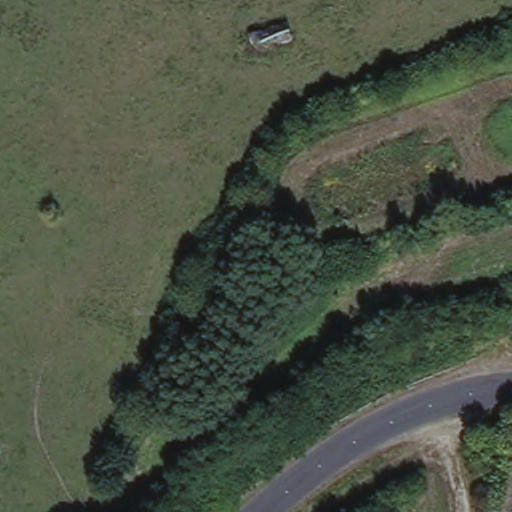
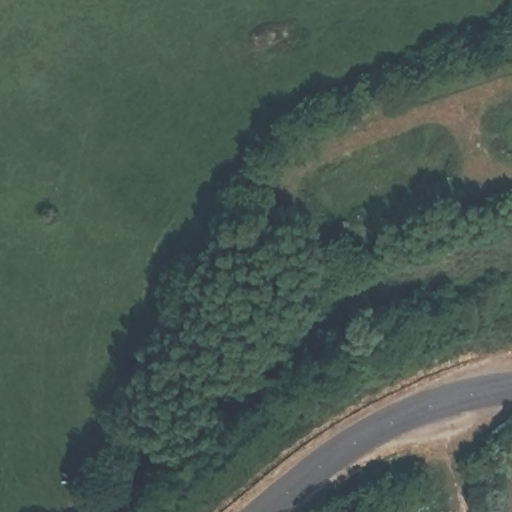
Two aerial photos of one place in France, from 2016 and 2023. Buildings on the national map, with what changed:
unchanged [(285,19),(290,35),(252,46),(248,30),(285,19)]

